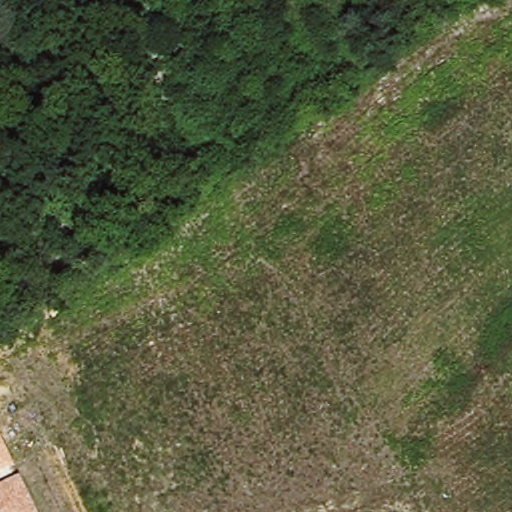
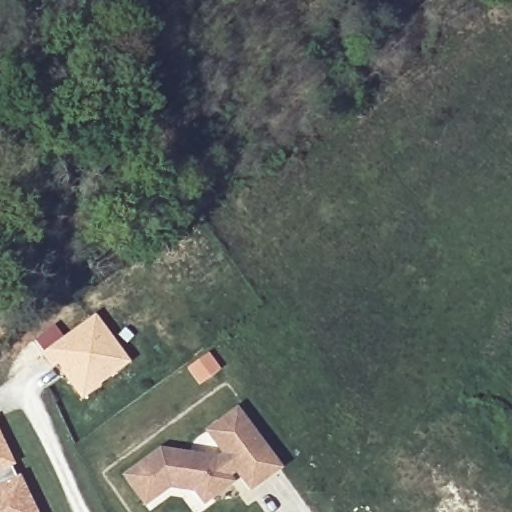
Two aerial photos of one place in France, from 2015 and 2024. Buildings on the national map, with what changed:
new [(130,362),(80,400),(56,367),(51,369),(40,353),(94,314),(130,362)]
new [(282,470),(249,494),(235,475),(232,477),(237,484),(204,507),(194,493),(170,490),(146,508),(122,475),(160,448),(216,458),(220,455),(203,432),(236,407),(282,470)]
unchanged [(14,464),(0,471),(0,435),(14,464)]
unchanged [(39,512),(0,512),(0,484),(21,474),(39,512)]

